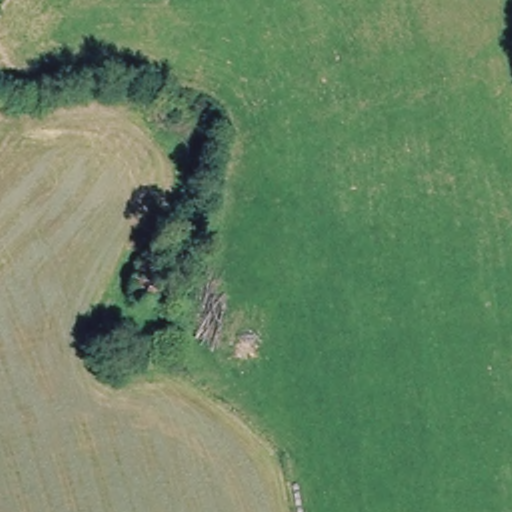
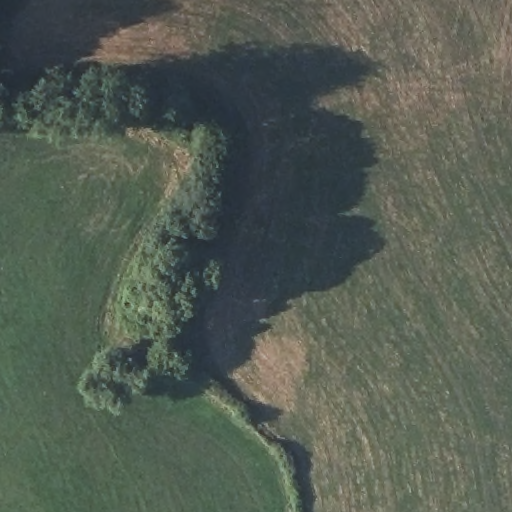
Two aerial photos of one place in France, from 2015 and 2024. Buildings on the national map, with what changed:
unchanged [(140,256),(172,264),(160,307),(129,296),(140,256)]

